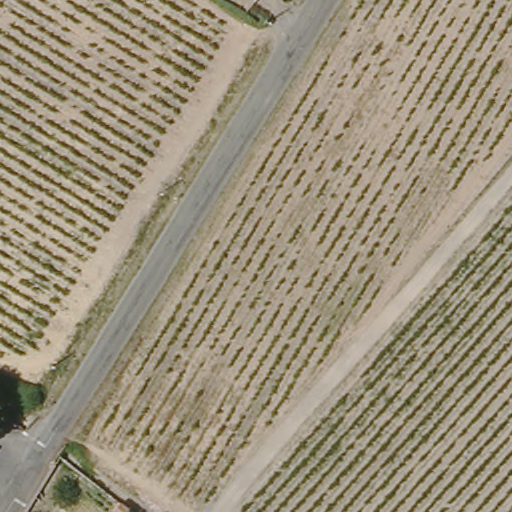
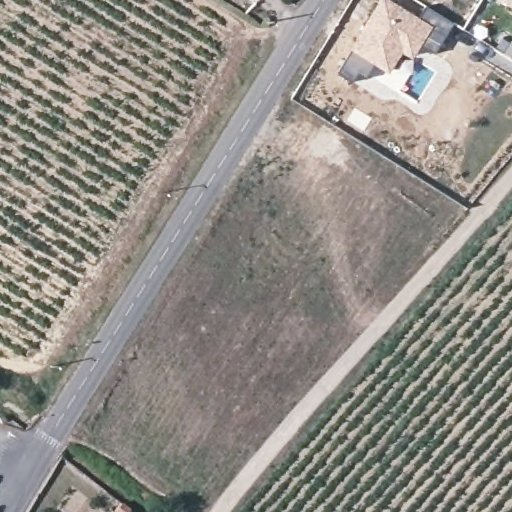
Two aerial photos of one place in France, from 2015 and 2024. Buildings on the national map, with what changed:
new [(427,6),(454,23),(436,55),(422,48),(414,59),(403,53),(390,73),(349,48),(379,0),(394,0),(420,16),(427,6)]
new [(512,0),(512,5),(505,0),(512,0)]
new [(512,58),(503,53),(510,41),(512,42),(512,58)]
unchanged [(109,510),(117,500),(127,508),(124,512),(112,512),(109,510)]

